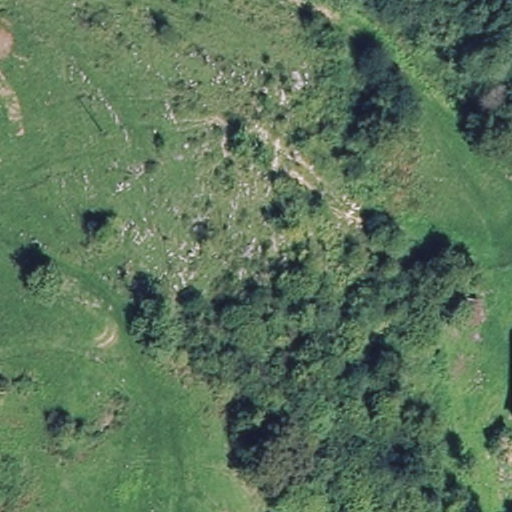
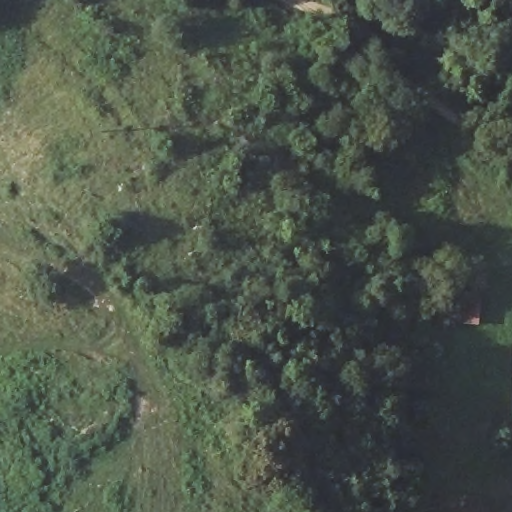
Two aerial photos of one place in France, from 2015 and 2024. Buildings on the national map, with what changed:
[]

